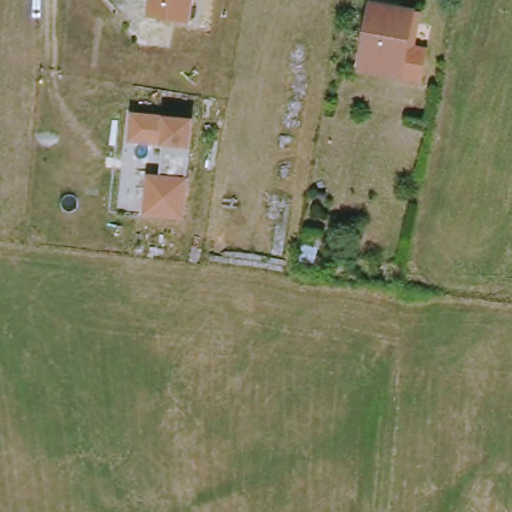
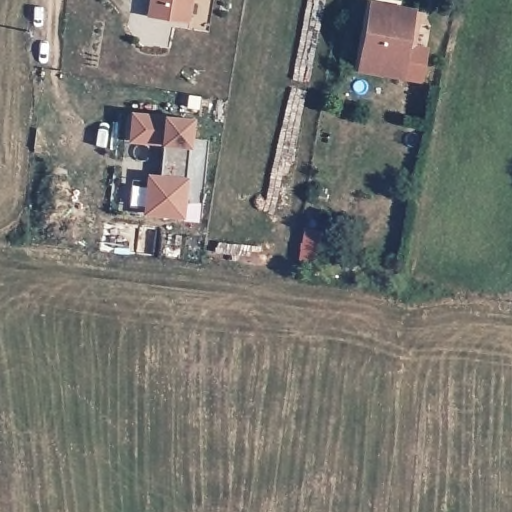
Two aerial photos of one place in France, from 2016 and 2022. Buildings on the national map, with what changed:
unchanged [(146,15),(148,0),(191,0),(188,22),(146,15)]
unchanged [(360,74),(363,60),(372,3),(413,9),(404,67),(402,81),(360,74)]
unchanged [(143,211),(147,171),(157,172),(160,141),(128,138),(130,109),(164,111),(193,114),(190,145),(187,175),(184,215),(143,211)]

